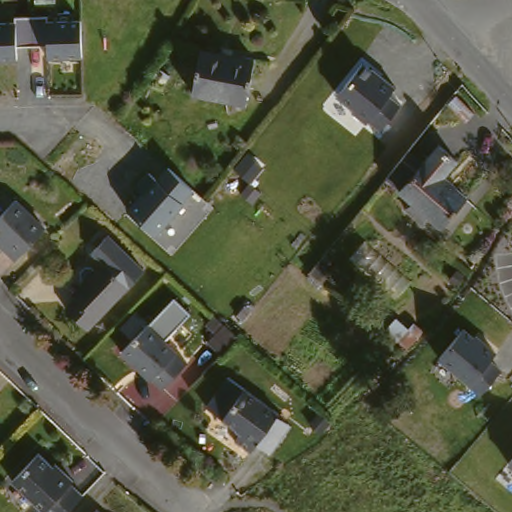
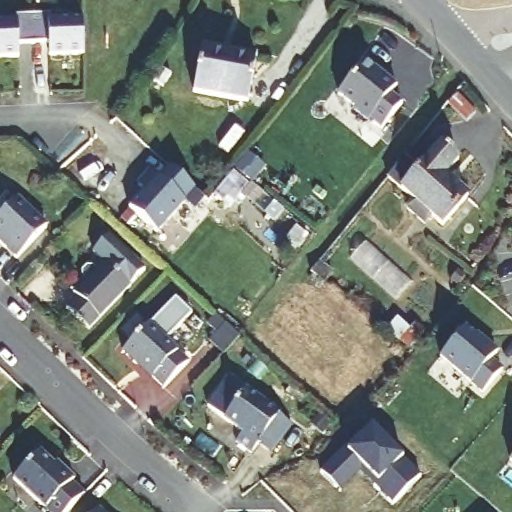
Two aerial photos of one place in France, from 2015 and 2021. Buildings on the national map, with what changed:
unchanged [(25,15),(25,9),(52,8),(52,15),(89,14),(90,26),(91,52),(54,54),(54,38),(30,39),(29,55),(0,56),(0,15),(25,15)]
unchanged [(252,95),(198,85),(207,43),(261,53),(252,95)]
unchanged [(382,127),(371,120),(369,121),(337,94),(366,61),(396,87),(388,97),(401,107),(382,127)]
unchanged [(159,66),(171,76),(162,88),(149,80),(159,66)]
unchanged [(414,200),(420,193),(410,185),(397,174),(415,150),(419,146),(433,160),(450,140),(468,156),(454,172),(476,191),(451,220),(435,205),(428,213),(414,200)]
unchanged [(158,235),(128,210),(168,166),(195,190),(158,235)]
unchanged [(23,256),(3,237),(8,232),(0,224),(0,221),(24,196),(53,225),(23,256)]
unchanged [(144,277),(90,333),(70,313),(78,305),(73,300),(103,269),(92,258),(108,242),(144,277)]
unchanged [(314,295),(301,284),(319,264),(320,262),(331,272),(314,295)]
unchanged [(146,323),(147,324),(173,296),(189,311),(163,339),(188,362),(167,385),(137,357),(135,360),(123,347),(146,323)]
unchanged [(220,316),(237,331),(224,345),(208,331),(220,316)]
unchanged [(413,322),(422,329),(416,335),(408,345),(398,338),(413,322)]
unchanged [(481,392),(439,358),(465,326),(497,353),(491,360),(501,370),(481,392)]
unchanged [(268,440),(262,448),(247,438),(253,430),(236,420),(219,408),(239,377),(256,388),(255,390),(289,412),(285,417),(299,427),(283,451),(268,440)]
unchanged [(7,395),(0,403),(0,389),(7,395)]
new [(360,473),(338,492),(319,473),(344,450),(370,425),(402,457),(420,477),(392,504),(360,473)]
unchanged [(59,467),(63,462),(76,475),(74,479),(83,490),(78,494),(60,512),(59,512),(18,472),(41,449),(59,467)]
unchanged [(512,466),(508,463),(512,459),(512,466)]
unchanged [(115,512),(99,512),(106,504),(115,512)]

